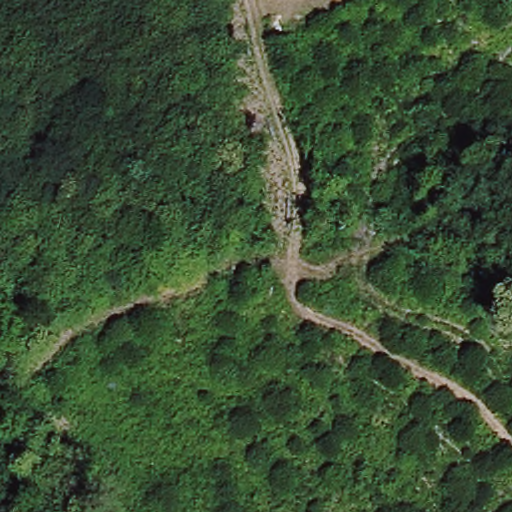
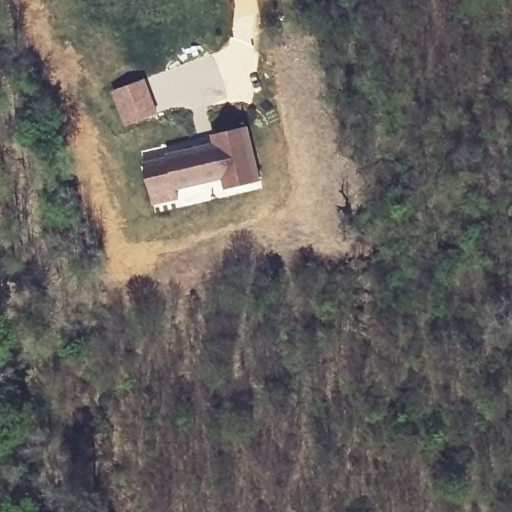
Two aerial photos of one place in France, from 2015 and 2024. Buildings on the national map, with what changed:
new [(142,81),(154,116),(124,128),(112,93),(142,81)]
new [(151,204),(148,192),(142,166),(166,161),(165,158),(213,146),(210,138),(246,129),(259,184),(224,192),(221,179),(175,190),(176,198),(151,204)]

